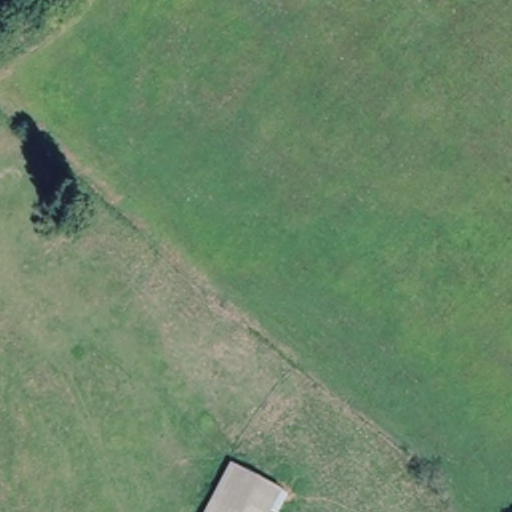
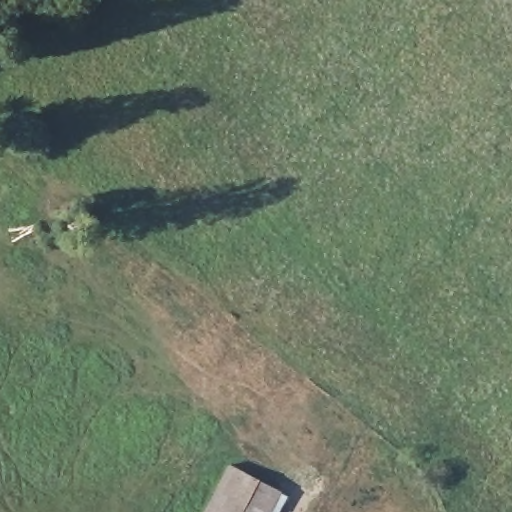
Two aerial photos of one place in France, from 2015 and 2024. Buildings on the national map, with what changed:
unchanged [(292,493),(281,512),(204,512),(230,460),(292,493)]

